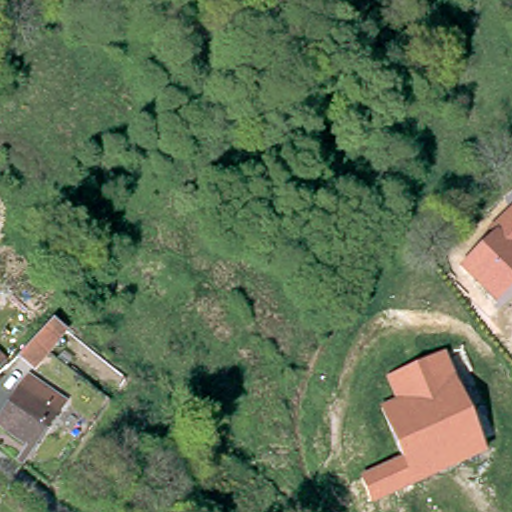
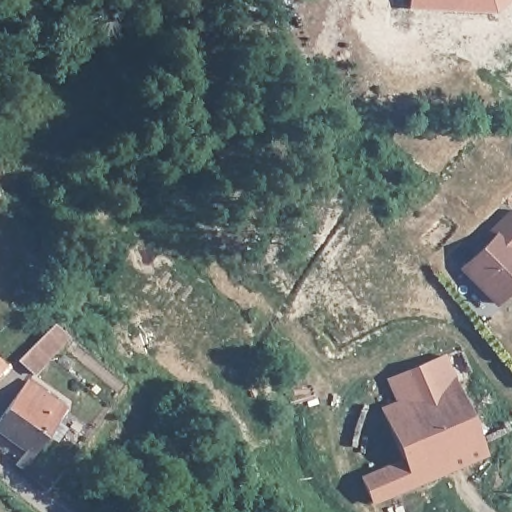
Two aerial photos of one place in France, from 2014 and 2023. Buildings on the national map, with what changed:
new [(413,0),(507,0),(497,10),(412,4),(413,0)]
unchanged [(512,289),(493,308),(459,269),(490,238),(487,233),(512,208),(512,289)]
unchanged [(17,369),(53,334),(72,348),(35,382),(17,369)]
unchanged [(369,477),(413,458),(393,409),(409,402),(400,381),(472,351),(504,436),(487,442),(492,455),(378,499),(369,477)]
unchanged [(30,389),(66,415),(32,460),(0,437),(0,430),(30,389)]

